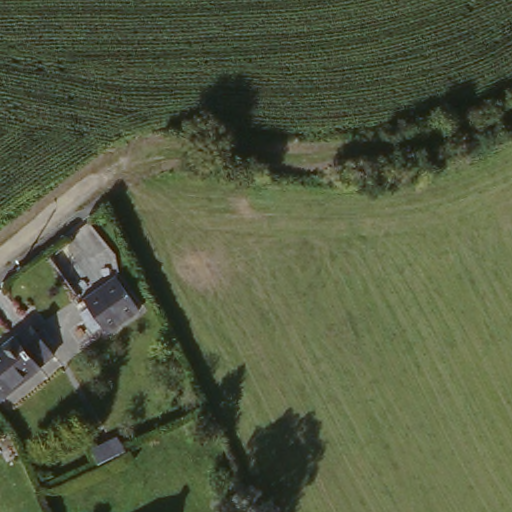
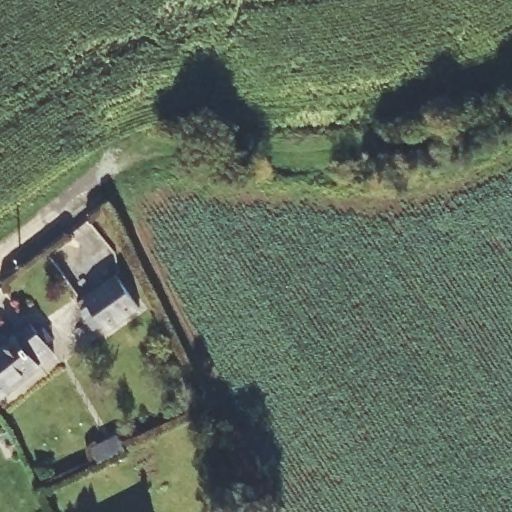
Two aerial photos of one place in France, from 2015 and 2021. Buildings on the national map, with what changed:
unchanged [(107,279),(132,311),(101,335),(76,304),(107,279)]
unchanged [(7,348),(23,335),(46,361),(31,374),(34,377),(0,404),(0,350),(6,345),(7,348)]
unchanged [(82,456),(107,444),(114,457),(89,470),(82,456)]

